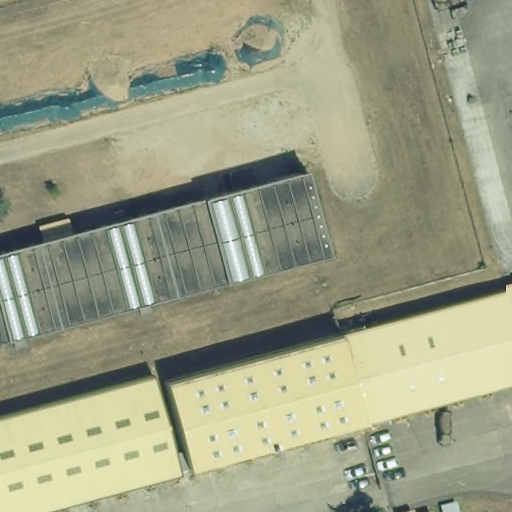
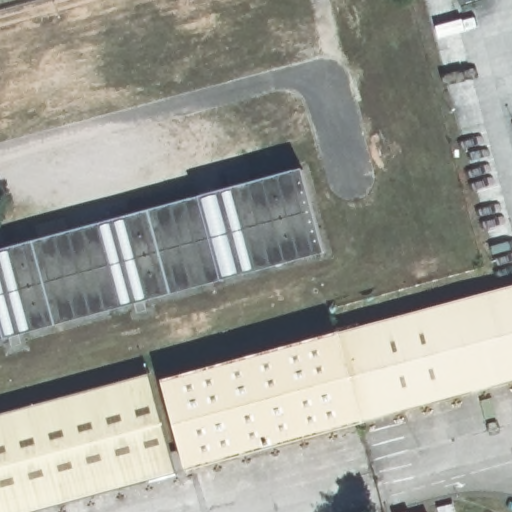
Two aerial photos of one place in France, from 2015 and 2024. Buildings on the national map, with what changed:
unchanged [(0,338),(0,248),(304,166),(326,251),(7,336),(0,338)]
unchanged [(187,466),(163,377),(339,332),(512,286),(512,378),(361,418),(187,466)]
unchanged [(175,471),(21,512),(0,512),(0,413),(148,374),(175,471)]
unchanged [(410,508),(411,512),(401,512),(410,508)]

